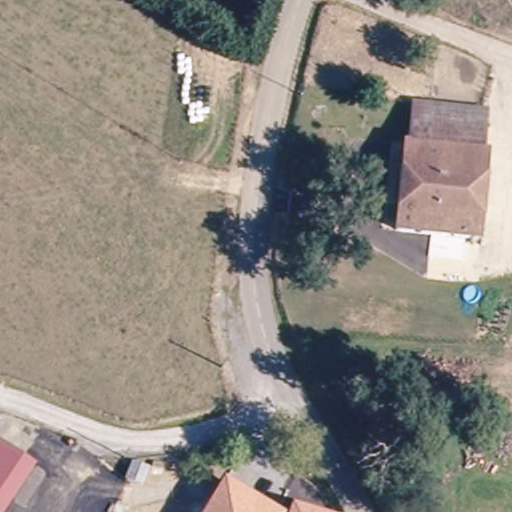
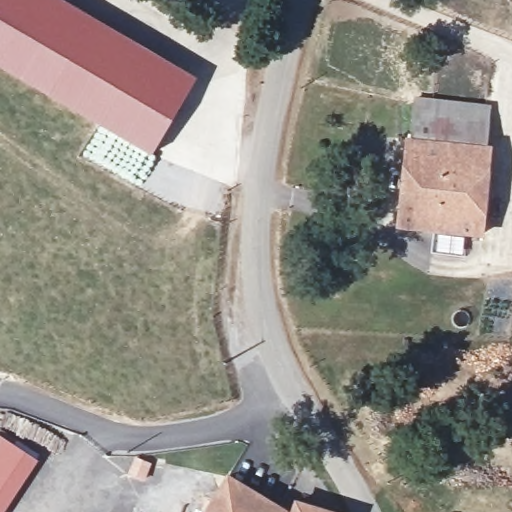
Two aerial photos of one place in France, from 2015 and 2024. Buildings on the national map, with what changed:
new [(0,68),(0,0),(59,0),(195,78),(149,156),(0,68)]
unchanged [(411,140),(412,100),(429,100),(462,101),(481,102),(480,117),(479,142),(489,142),(487,231),(480,230),(406,228),(408,140),(411,140)]
unchanged [(1,512),(0,512),(0,433),(36,457),(1,512)]
unchanged [(226,475),(282,509),(280,512),(206,512),(226,475)]
unchanged [(294,497),(334,512),(291,512),(294,497)]

